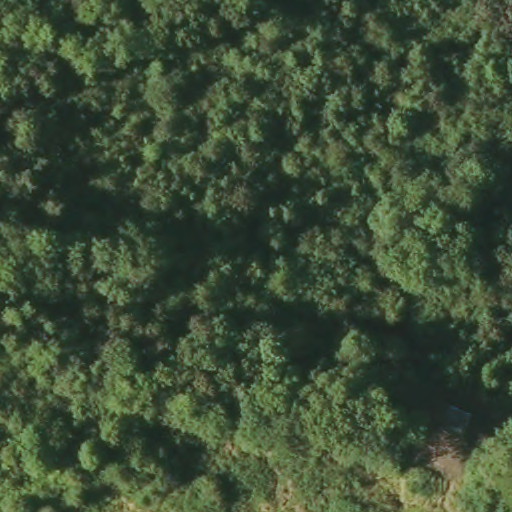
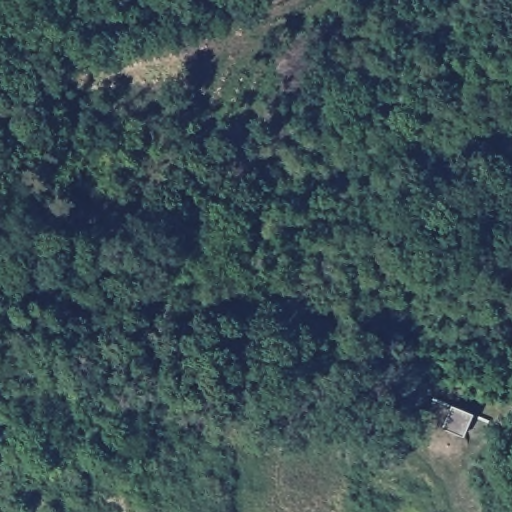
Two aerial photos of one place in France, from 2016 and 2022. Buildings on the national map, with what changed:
unchanged [(463,435),(436,425),(446,399),(471,410),(463,435)]

